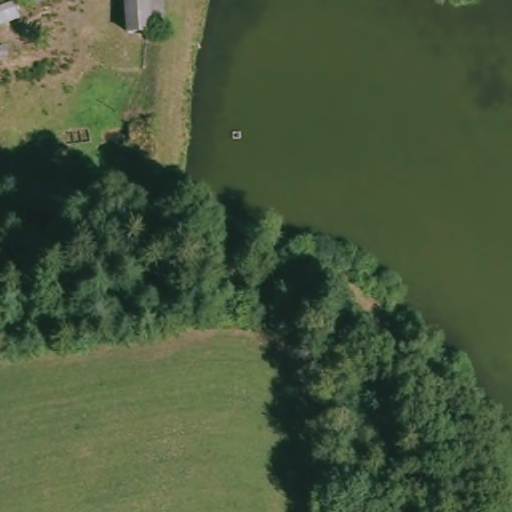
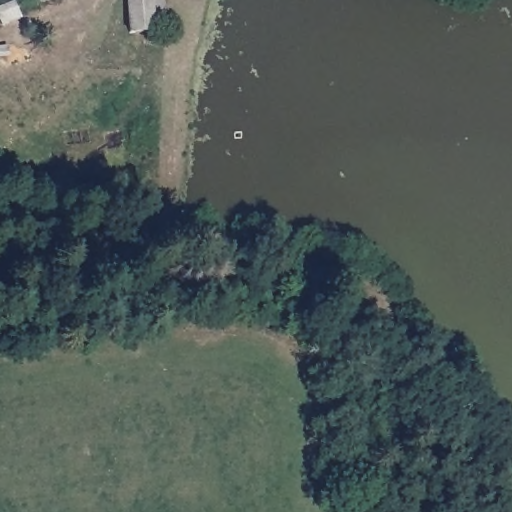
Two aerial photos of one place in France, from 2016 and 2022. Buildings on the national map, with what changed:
unchanged [(133,34),(132,0),(155,0),(158,31),(133,34)]

